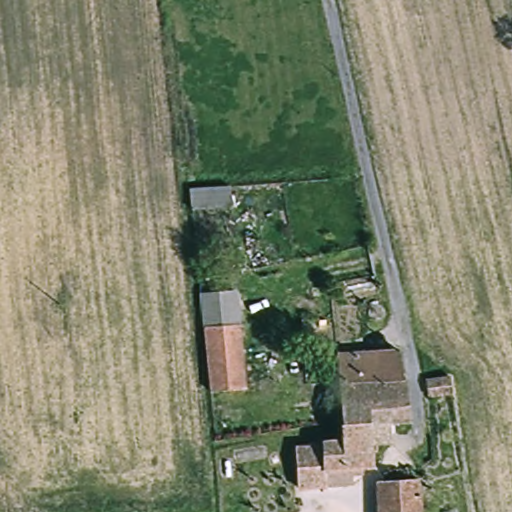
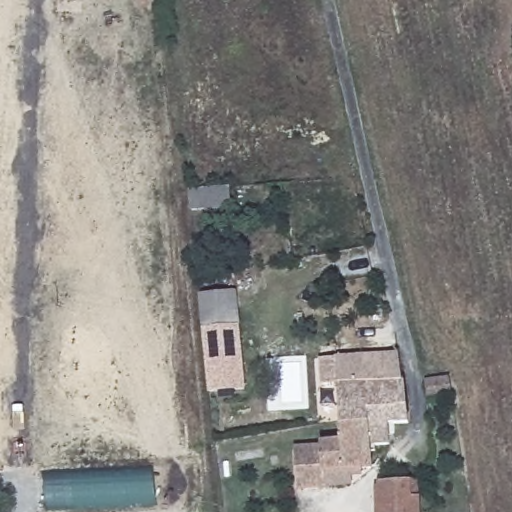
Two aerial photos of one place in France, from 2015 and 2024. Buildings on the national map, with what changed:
unchanged [(235,212),(191,217),(188,192),(234,189),(235,212)]
unchanged [(246,386),(212,390),(201,296),(236,292),(246,386)]
unchanged [(340,385),(321,387),(318,358),(337,357),(395,350),(410,420),(390,422),(345,427),(340,385)]
unchanged [(447,377),(451,397),(428,401),(424,382),(447,377)]
unchanged [(393,445),(373,447),(376,466),(351,468),(352,482),(295,488),(291,455),(325,451),(324,443),(346,441),(345,427),(390,422),(393,445)]
new [(45,510),(43,470),(154,463),(156,503),(45,510)]
unchanged [(411,480),(412,497),(421,497),(421,512),(374,512),(374,482),(411,480)]

